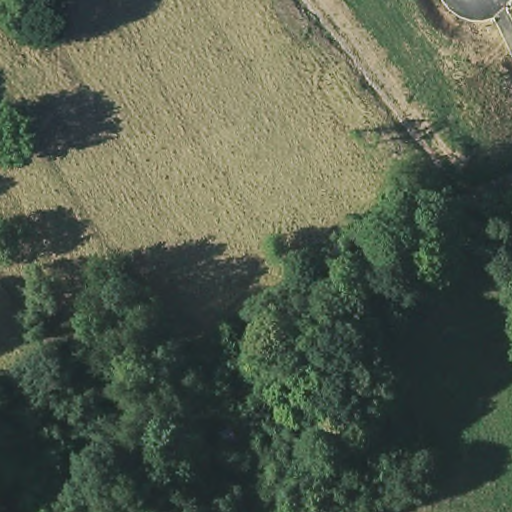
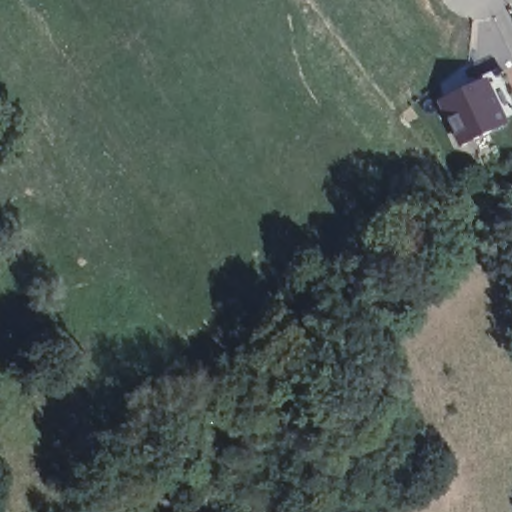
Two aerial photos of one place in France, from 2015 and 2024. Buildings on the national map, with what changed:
new [(462,143),(456,132),(455,132),(448,118),(453,116),(444,97),(472,85),(474,89),(485,84),(483,79),(502,70),(512,91),(512,113),(503,118),(504,122),(487,131),(462,143)]

